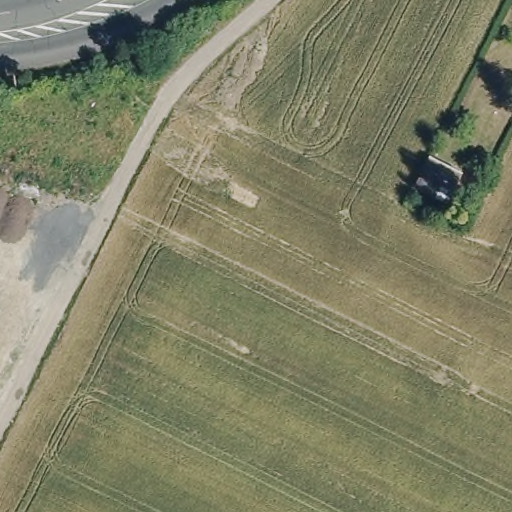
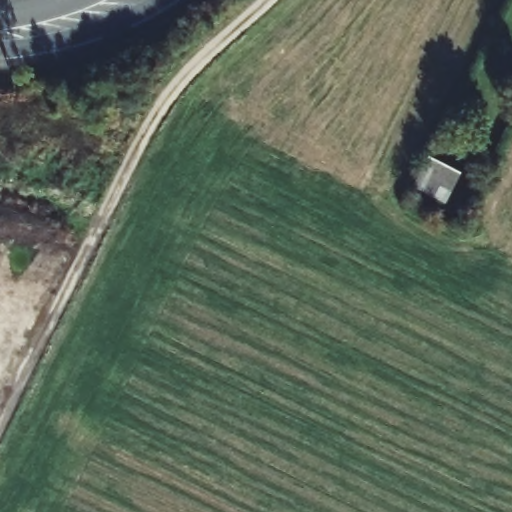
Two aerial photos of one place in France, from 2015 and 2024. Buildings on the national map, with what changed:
unchanged [(465,174),(450,208),(413,190),(430,158),(465,174)]

